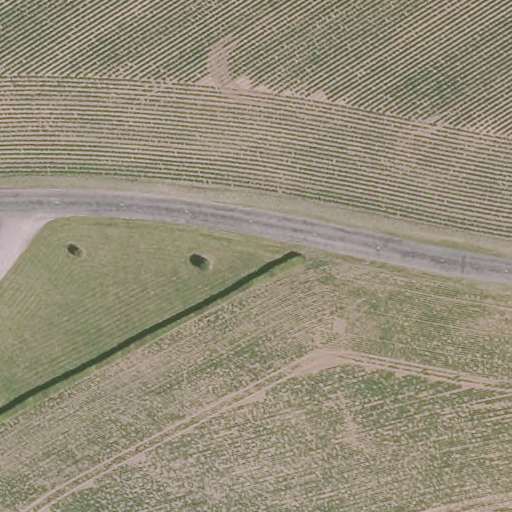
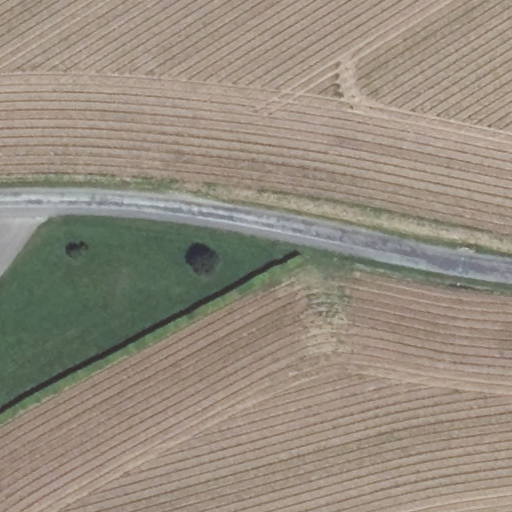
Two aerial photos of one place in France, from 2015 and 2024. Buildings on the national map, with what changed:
[]

